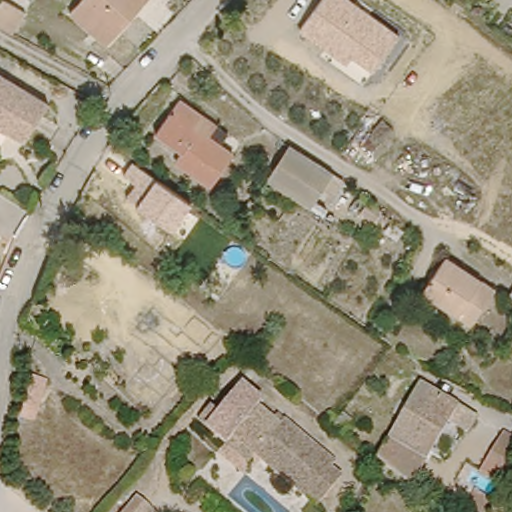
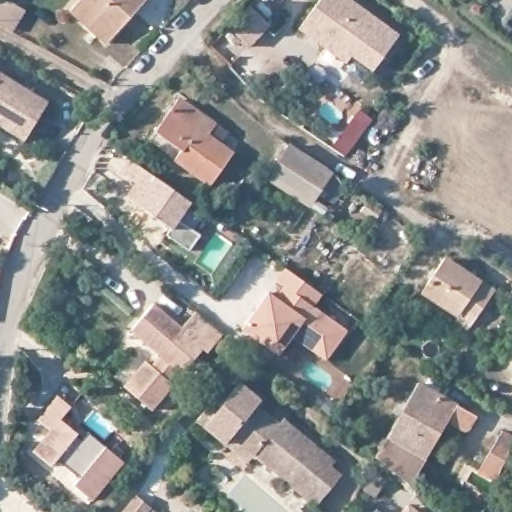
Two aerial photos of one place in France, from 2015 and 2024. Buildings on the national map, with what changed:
unchanged [(144,0),(110,44),(73,14),(83,0),(144,0)]
unchanged [(348,62),(299,29),(319,0),(353,0),(399,35),(372,72),(352,58),(348,62)]
unchanged [(0,30),(0,8),(4,2),(27,17),(14,39),(0,30)]
unchanged [(46,101),(25,140),(0,126),(0,73),(46,101)]
unchanged [(213,180),(179,155),(184,147),(160,127),(183,94),(207,110),(220,121),(211,131),(234,150),(213,180)]
unchanged [(322,172),(325,167),(341,177),(319,213),(299,203),(284,196),(258,175),(281,144),(322,172)]
unchanged [(126,195),(134,183),(123,174),(132,162),(157,177),(193,202),(174,228),(137,204),(126,195)]
unchanged [(428,296),(451,262),(499,295),(481,322),(469,312),(463,320),(428,296)]
new [(269,287),(277,292),(285,282),(277,277),(286,263),(323,290),(314,302),(348,326),(327,356),(293,332),(280,351),(243,325),(269,287)]
demolished [(97,312),(91,318),(76,307),(101,275),(115,285),(120,280),(167,315),(143,347),(97,312)]
new [(181,326),(195,310),(224,335),(207,352),(203,349),(184,372),(151,411),(123,385),(146,360),(151,366),(161,356),(131,331),(153,303),(181,326)]
unchanged [(339,472),(315,501),(255,450),(249,457),(225,437),(199,415),(210,401),(217,407),(240,379),(260,396),(256,401),(274,417),(278,412),(283,416),(328,455),(333,458),(329,463),(339,472)]
unchanged [(416,382),(456,407),(474,415),(463,436),(458,438),(442,430),(421,467),(405,493),(371,463),(382,442),(416,382)]
new [(72,406),(62,421),(82,441),(90,431),(126,463),(93,498),(76,485),(83,476),(59,457),(52,465),(34,448),(53,427),(41,417),(58,395),(72,406)]
unchanged [(512,440),(512,453),(487,512),(469,512),(474,498),(480,498),(488,483),(478,477),(502,436),(512,440)]
unchanged [(138,500),(152,510),(150,512),(128,512),(138,500)]
new [(408,505),(418,512),(401,512),(408,505)]
new [(378,511),(379,512),(377,512),(378,511)]

